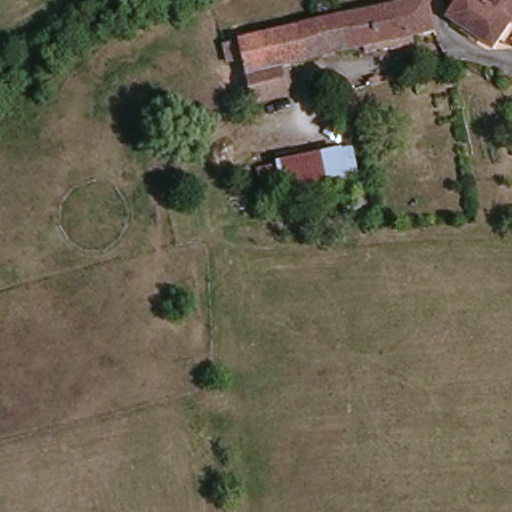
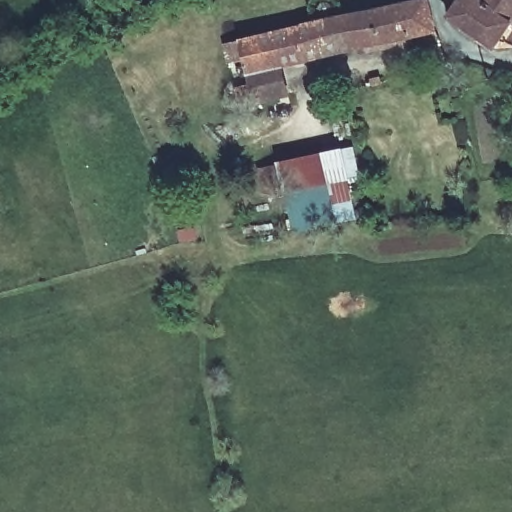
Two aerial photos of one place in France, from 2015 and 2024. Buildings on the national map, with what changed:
unchanged [(512,0),(512,37),(502,52),(457,18),(470,0),(512,0)]
unchanged [(247,81),(233,85),(229,62),(225,47),(316,26),(331,22),(426,1),(437,40),(280,74),(288,102),(255,109),(247,81)]
unchanged [(283,196),(262,200),(255,171),(274,166),(340,150),(342,161),(354,161),(357,184),(347,189),(348,205),(288,216),(283,196)]

